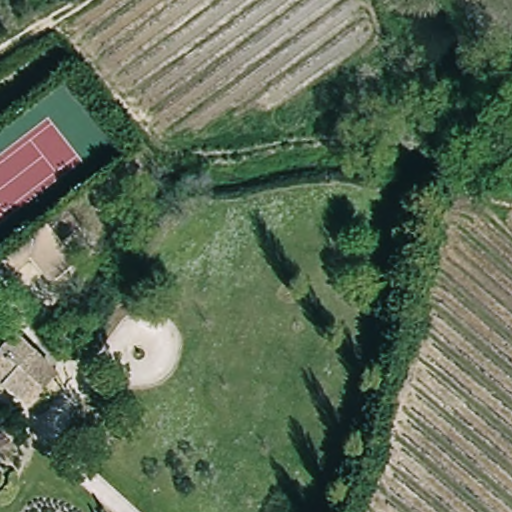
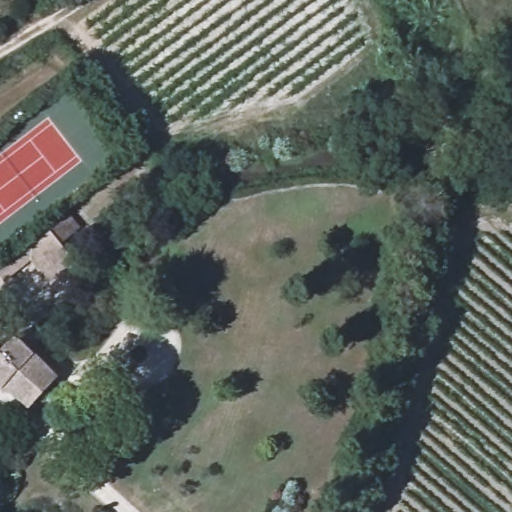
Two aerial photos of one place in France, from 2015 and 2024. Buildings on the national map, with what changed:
unchanged [(32,262),(6,284),(0,276),(0,263),(45,221),(76,260),(47,280),(32,262)]
unchanged [(60,374),(29,410),(2,392),(0,391),(0,343),(18,336),(60,374)]

